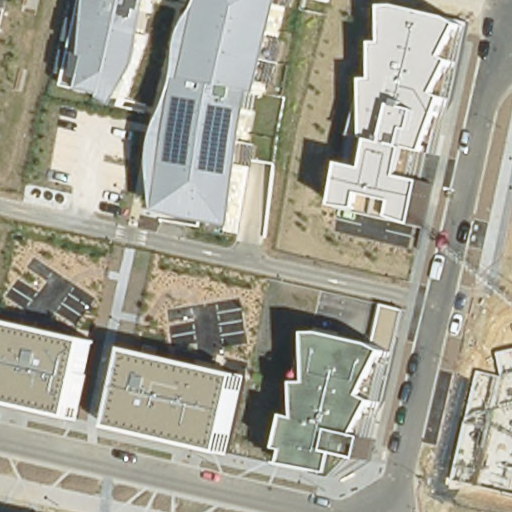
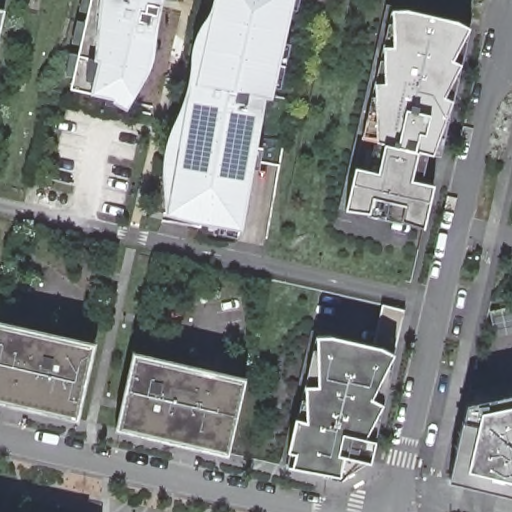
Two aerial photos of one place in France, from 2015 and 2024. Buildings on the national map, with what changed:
unchanged [(92,0),(164,0),(151,69),(127,107),(114,99),(114,95),(91,91),(71,87),(92,0)]
unchanged [(272,97),(266,96),(244,228),(167,212),(163,174),(164,156),(166,144),(174,124),(182,102),(188,89),(191,74),(192,60),(192,47),(197,34),(204,21),(213,9),(215,0),(293,0),(272,97)]
unchanged [(4,10),(0,27),(0,9),(4,10)]
unchanged [(468,27),(452,60),(460,64),(444,96),(453,100),(432,154),(416,151),(411,179),(435,185),(424,227),(402,219),(368,212),(347,209),(357,166),(379,171),(386,142),(377,140),(375,82),(386,81),(384,45),(395,45),(392,9),(407,9),(458,20),(468,27)]
unchanged [(383,403),(365,438),(375,440),(370,462),(345,456),(341,475),(292,465),(295,452),(288,450),(295,417),(309,420),(307,385),(320,383),(318,336),(332,335),(374,344),(382,306),(405,310),(395,353),(372,397),(383,403)]
unchanged [(78,420),(0,403),(0,320),(96,340),(78,420)]
unchanged [(229,455),(117,430),(134,350),(247,376),(229,455)]
new [(466,403),(512,394),(512,495),(447,481),(466,403)]

